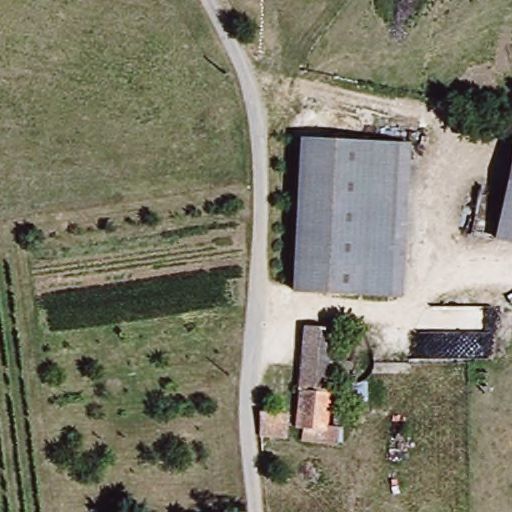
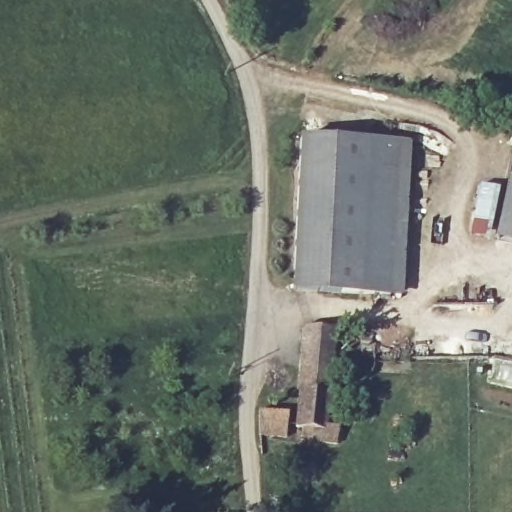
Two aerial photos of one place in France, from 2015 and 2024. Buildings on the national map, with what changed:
unchanged [(405,141),(395,290),(302,285),(311,137),(405,141)]
unchanged [(512,238),(494,234),(512,167),(512,238)]
unchanged [(336,328),(329,425),(337,425),(336,440),(305,438),(306,417),(297,416),(303,326),(336,328)]
unchanged [(260,437),(261,410),(289,411),(287,438),(260,437)]

